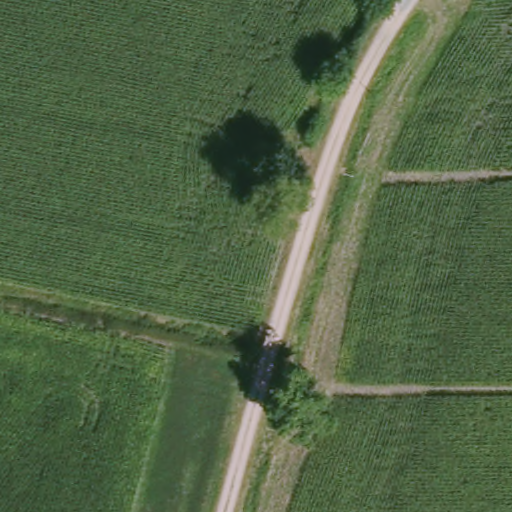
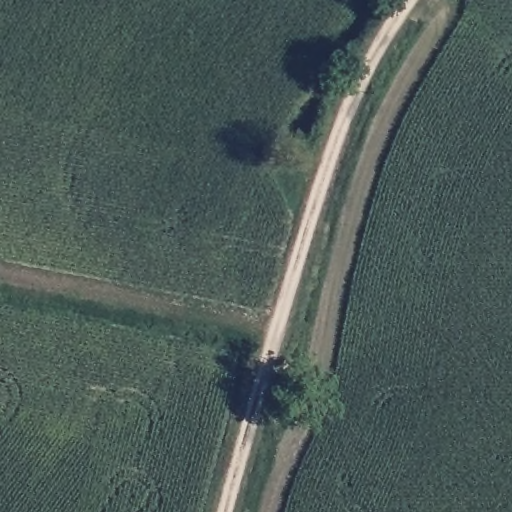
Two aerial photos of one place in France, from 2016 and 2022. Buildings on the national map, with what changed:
[]

